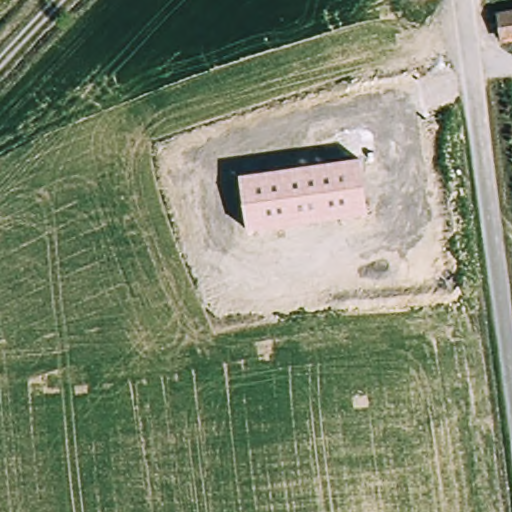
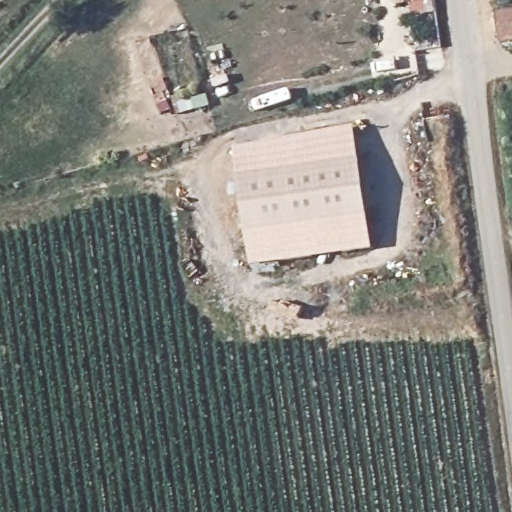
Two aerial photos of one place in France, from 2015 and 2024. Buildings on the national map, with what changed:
unchanged [(494,11),(512,8),(512,40),(498,43),(494,11)]
new [(239,175),(235,147),(354,125),(360,159),(239,175)]
unchanged [(360,159),(368,215),(245,231),(239,175),(360,159)]
new [(373,249),(251,266),(245,231),(368,215),(373,249)]

